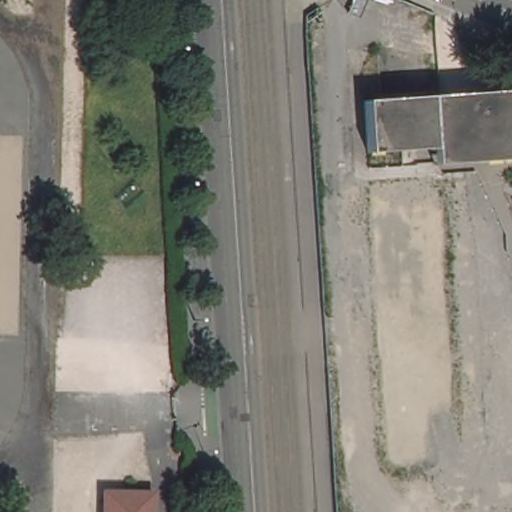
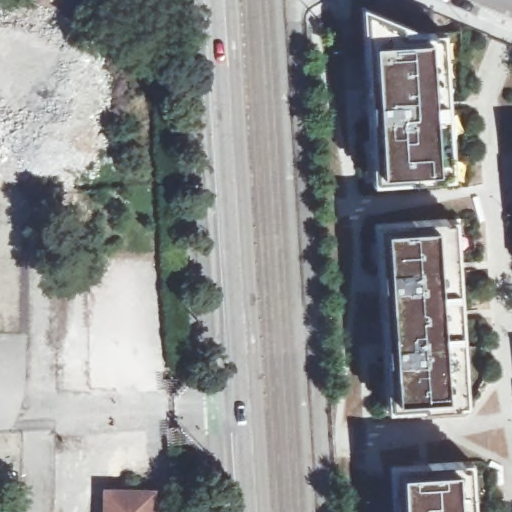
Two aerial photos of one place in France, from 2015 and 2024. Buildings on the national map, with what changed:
new [(373,183),(362,7),(422,32),(443,32),(452,179),(373,183)]
new [(443,32),(460,31),(470,179),(452,179),(443,32)]
demolished [(437,162),(436,147),(387,151),(385,151),(371,152),(370,152),(367,100),(382,99),(512,90),(512,157),(437,162)]
demolished [(395,462),(395,461),(394,446),(394,444),(393,430),(393,428),(392,414),(392,413),(391,398),(391,397),(390,382),(390,381),(390,366),(389,365),(388,350),(388,349),(378,189),(378,187),(403,185),(412,185),(438,184),(455,459),(430,460),(395,462)]
new [(387,410),(375,224),(455,219),(467,407),(387,410)]
new [(394,512),(391,468),(470,464),(474,512),(394,512)]
unchanged [(155,491),(154,512),(106,512),(107,491),(155,491)]

